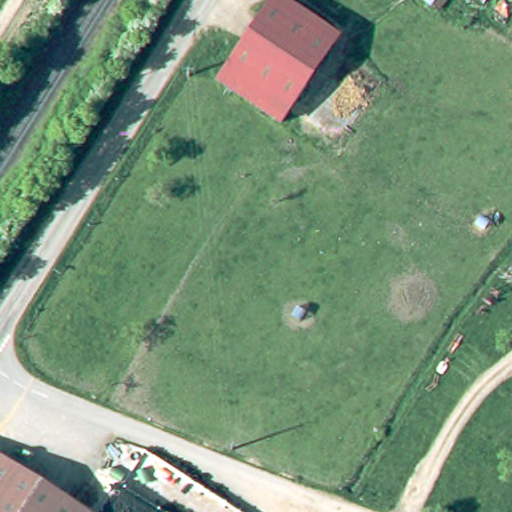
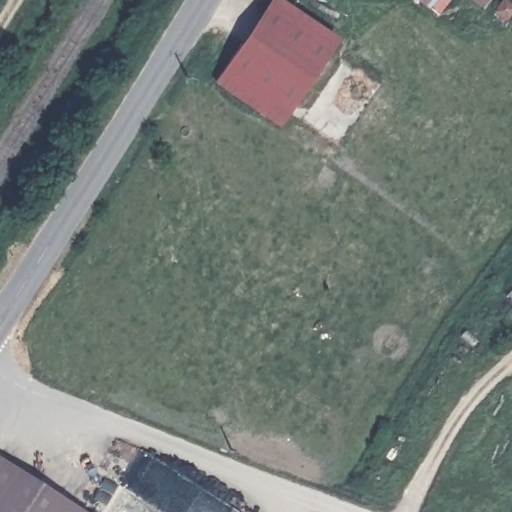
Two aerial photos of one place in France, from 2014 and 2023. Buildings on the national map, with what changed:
unchanged [(266,0),(292,0),(339,32),(306,79),(242,34),(266,0)]
unchanged [(497,10),(505,0),(507,0),(512,4),(512,13),(507,19),(497,10)]
unchanged [(282,112),(219,67),(242,34),(306,79),(282,112)]
unchanged [(97,510),(95,512),(0,512),(0,446),(97,510)]

